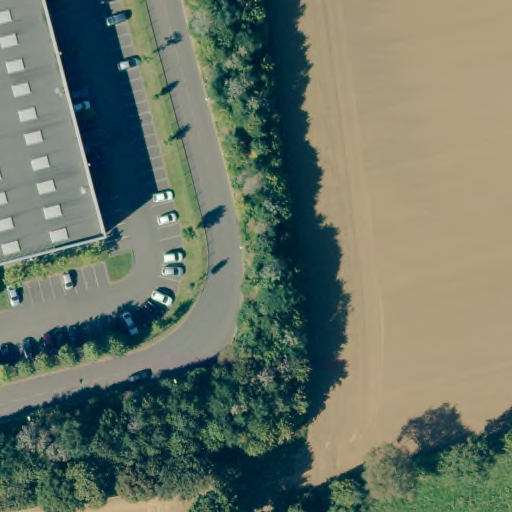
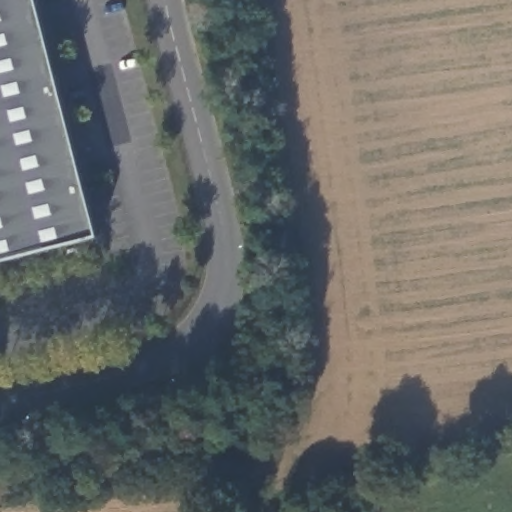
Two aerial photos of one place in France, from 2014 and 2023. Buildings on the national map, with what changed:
unchanged [(99,239),(0,264),(0,0),(37,0),(99,239)]

